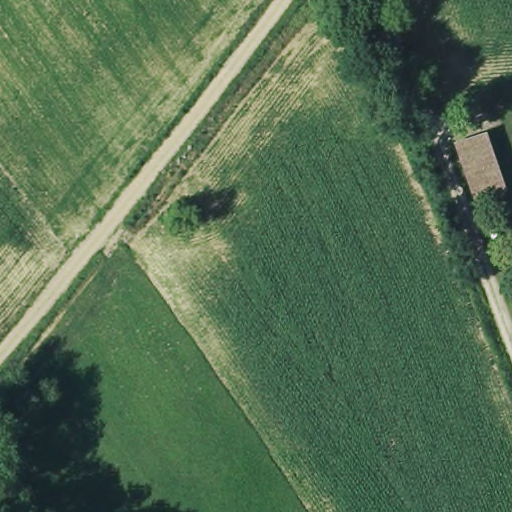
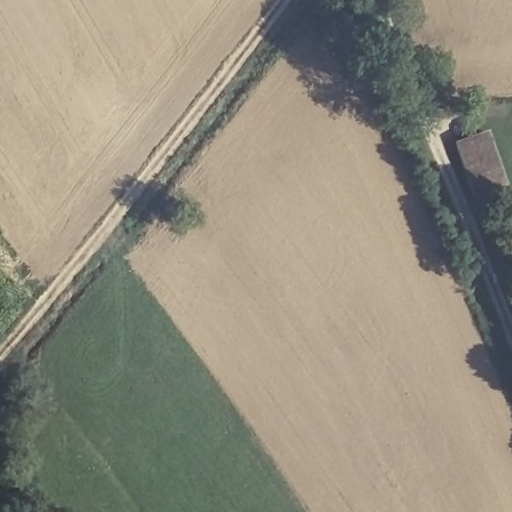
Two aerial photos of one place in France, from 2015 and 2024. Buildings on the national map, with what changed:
unchanged [(474,204),(453,145),(484,133),(507,194),(474,204)]

